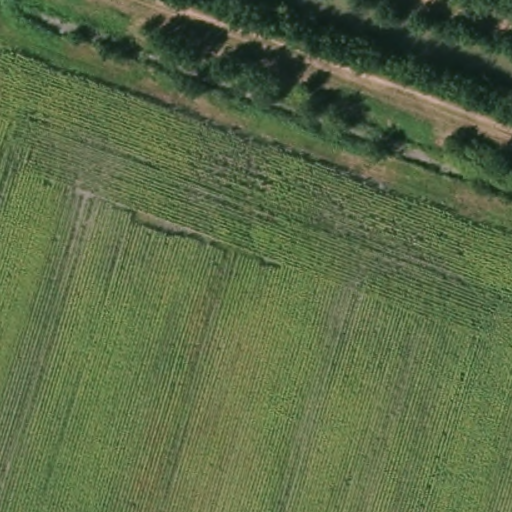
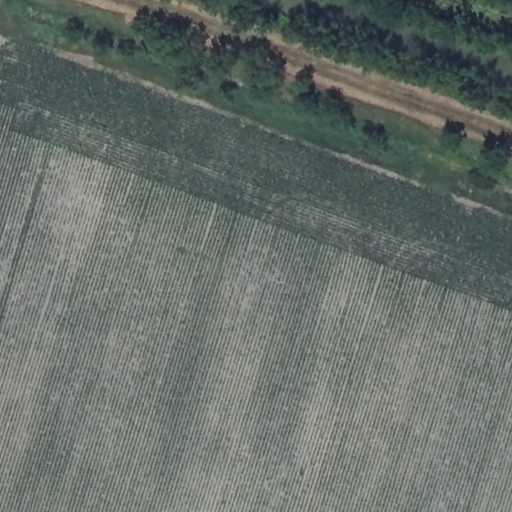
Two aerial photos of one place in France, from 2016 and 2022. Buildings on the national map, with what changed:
[]

